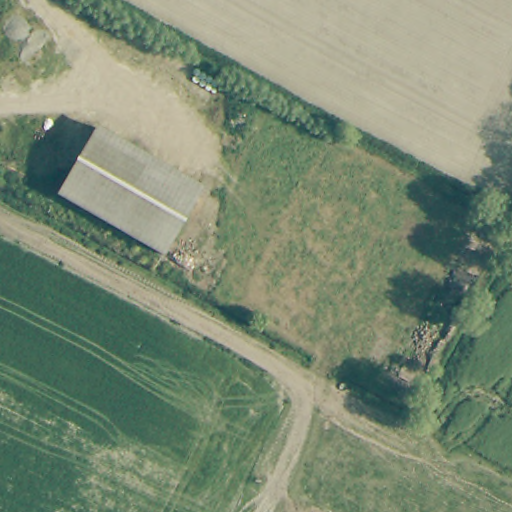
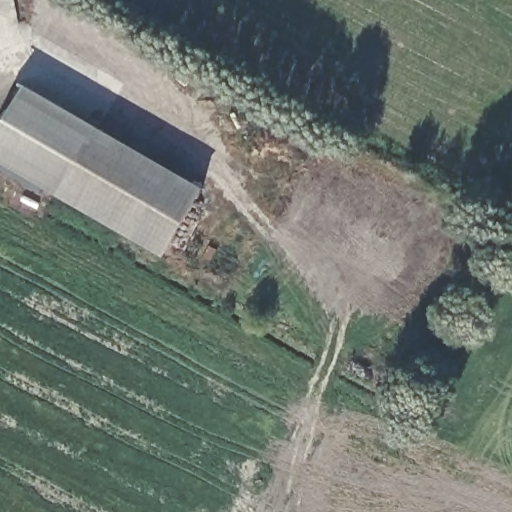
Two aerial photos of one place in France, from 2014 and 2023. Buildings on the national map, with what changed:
new [(58,196),(0,161),(0,131),(27,84),(97,127),(58,196)]
unchanged [(58,196),(97,127),(203,187),(164,257),(58,196)]

